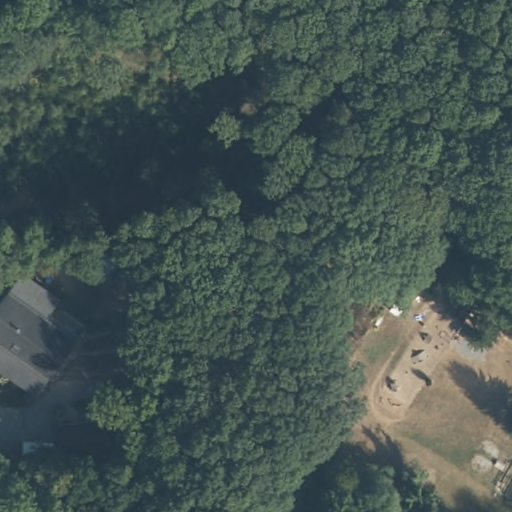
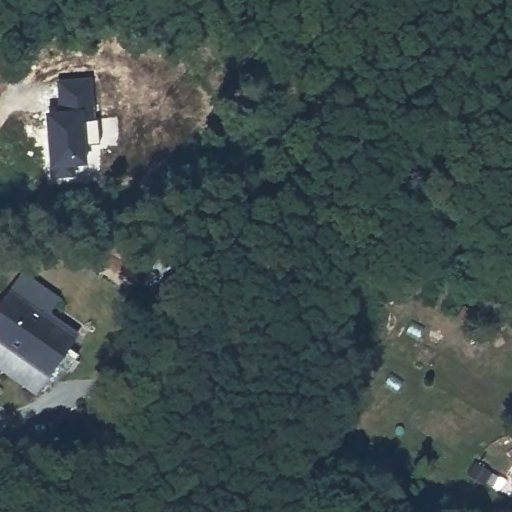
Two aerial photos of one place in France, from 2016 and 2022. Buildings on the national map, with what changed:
new [(50,164),(45,113),(59,111),(57,80),(89,78),(92,118),(117,117),(122,150),(100,153),(97,143),(82,143),(84,163),(71,164),(72,176),(52,176),(50,164)]
unchanged [(7,284),(19,268),(86,313),(75,328),(7,284)]
unchanged [(46,371),(0,341),(0,296),(7,284),(75,328),(46,371)]
unchanged [(34,389),(0,366),(0,341),(46,371),(34,389)]
unchanged [(101,418),(105,448),(56,454),(52,424),(101,418)]
new [(28,508),(29,512),(2,512),(28,508)]

